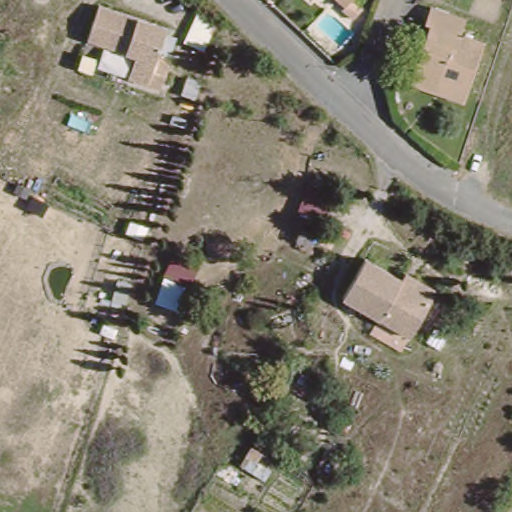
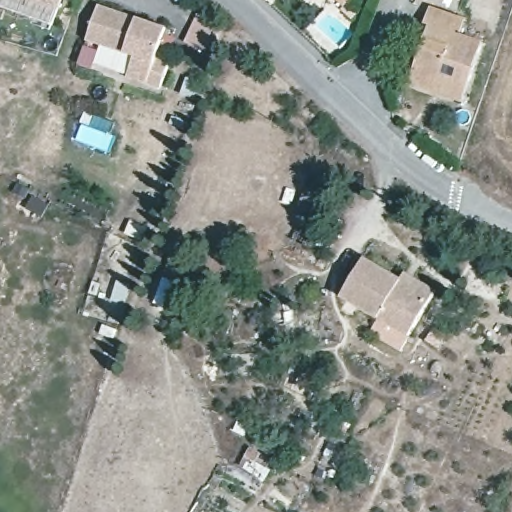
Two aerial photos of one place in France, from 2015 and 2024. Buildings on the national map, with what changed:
new [(64,0),(59,13),(56,11),(52,25),(0,6),(0,0),(64,0)]
unchanged [(311,0),(313,0),(312,1),(311,0)]
unchanged [(363,13),(351,23),(324,0),(355,0),(353,3),(363,13)]
unchanged [(128,55),(86,41),(99,3),(138,15),(168,25),(159,54),(172,59),(161,91),(125,80),(128,55)]
unchanged [(419,30),(423,10),(458,20),(454,38),(474,44),(460,105),(412,90),(426,31),(419,30)]
unchanged [(416,282),(436,295),(405,338),(378,321),(346,299),(371,264),(411,290),(416,282)]

